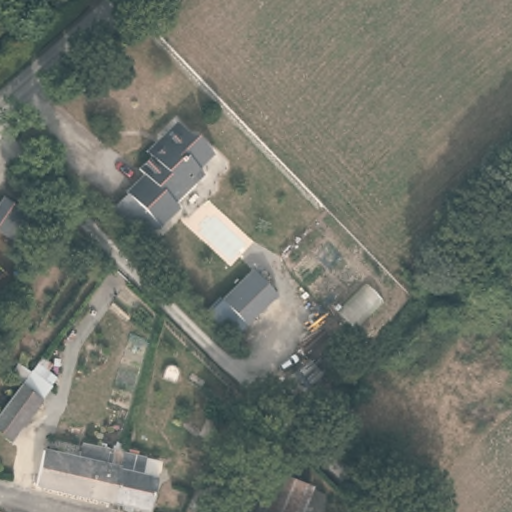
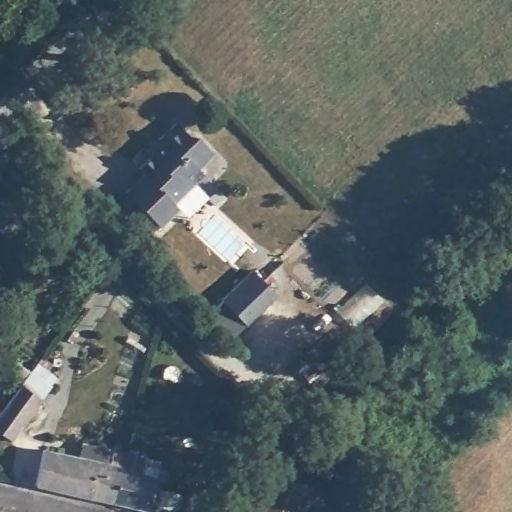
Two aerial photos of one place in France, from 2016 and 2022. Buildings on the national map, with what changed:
unchanged [(115,203),(130,188),(129,186),(142,170),(139,165),(149,156),(142,147),(155,134),(171,120),(185,133),(197,134),(211,149),(195,167),(201,173),(177,197),(183,204),(164,222),(162,220),(147,235),(115,203)]
unchanged [(4,199),(29,214),(28,219),(14,237),(0,228),(0,204),(4,199)]
unchanged [(512,199),(512,208),(507,203),(512,199)]
unchanged [(246,326),(222,300),(252,270),(277,297),(246,326)]
unchanged [(29,373),(47,387),(37,402),(7,442),(0,437),(0,413),(18,389),(29,373)]
unchanged [(46,456),(80,461),(85,446),(126,455),(115,505),(37,490),(46,456)]
unchanged [(126,455),(139,458),(136,475),(157,481),(149,512),(147,512),(115,505),(126,455)]
unchanged [(252,472),(277,481),(265,512),(237,512),(252,472)]
unchanged [(277,481),(318,496),(312,512),(265,512),(277,481)]

